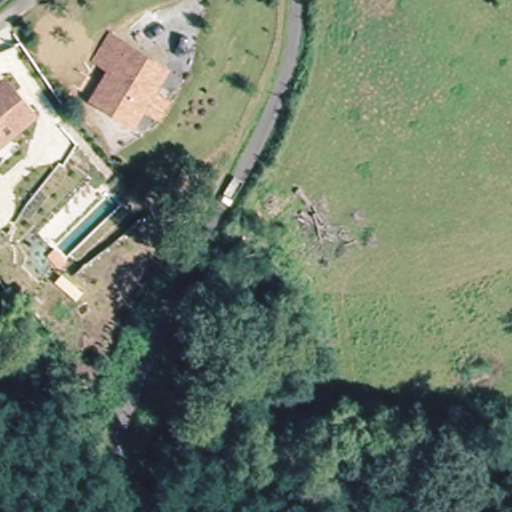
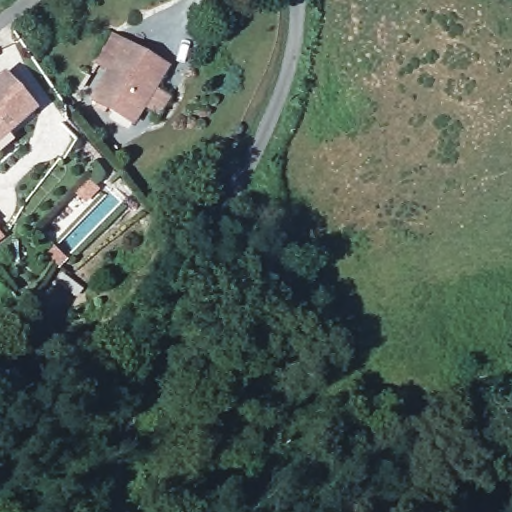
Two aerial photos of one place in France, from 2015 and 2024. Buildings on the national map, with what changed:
unchanged [(114,66),(99,56),(114,34),(169,68),(135,120),(95,96),(114,66)]
unchanged [(10,91),(21,106),(26,111),(0,132),(0,79),(10,91)]

